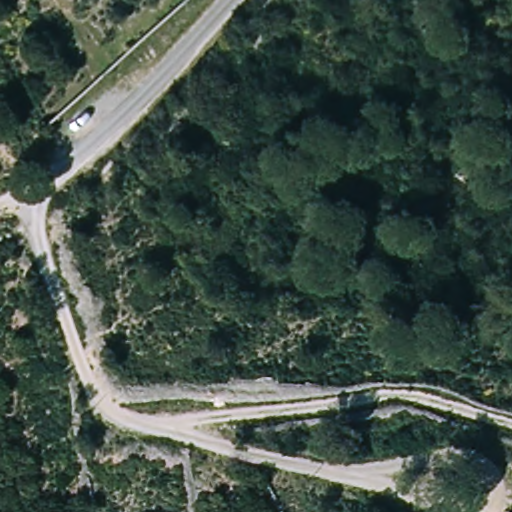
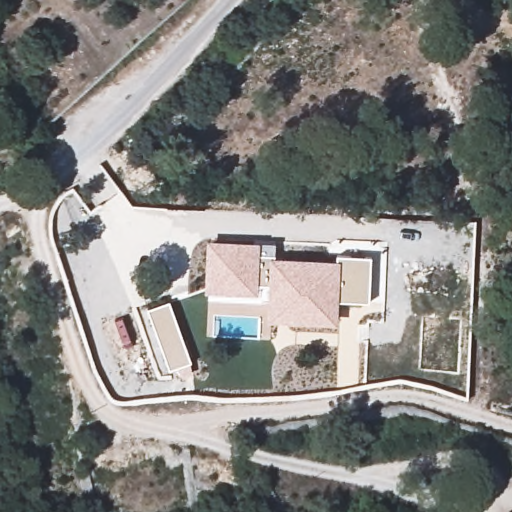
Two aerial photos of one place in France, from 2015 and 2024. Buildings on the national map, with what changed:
new [(259,242),(276,242),(276,257),(335,260),(335,254),(371,256),(369,302),(339,300),(337,325),(268,322),(269,283),(259,283),(258,294),(204,292),(207,241),(259,242)]
new [(191,362),(168,370),(146,308),(168,300),(191,362)]

